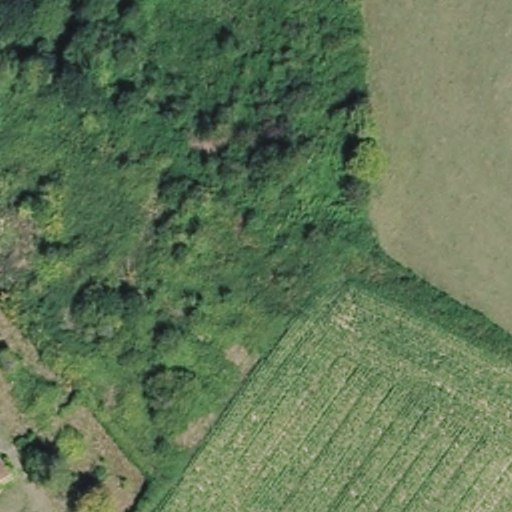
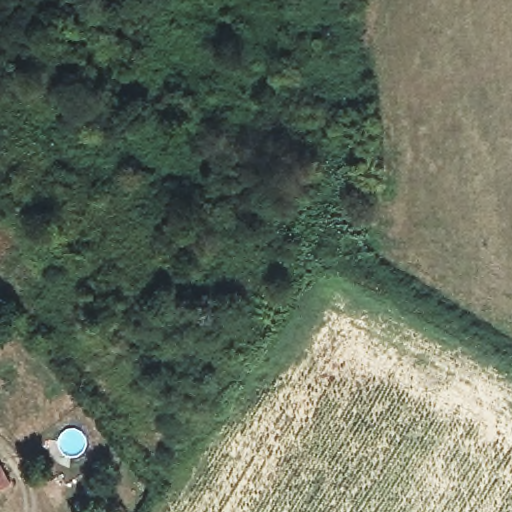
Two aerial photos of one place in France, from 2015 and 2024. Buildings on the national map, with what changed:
unchanged [(5,478),(0,481),(0,470),(5,478)]

